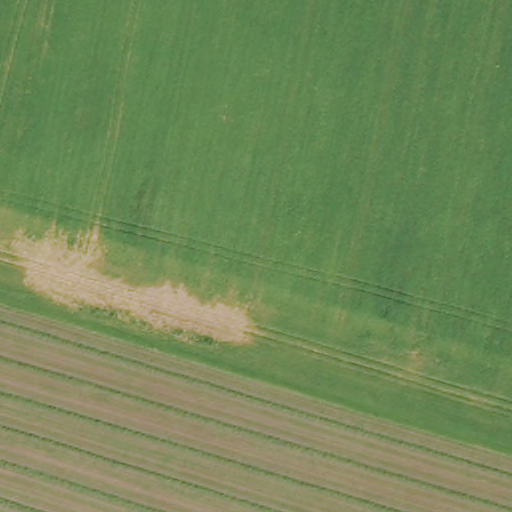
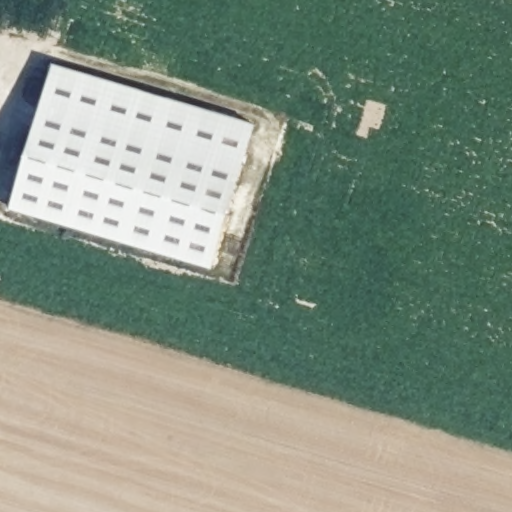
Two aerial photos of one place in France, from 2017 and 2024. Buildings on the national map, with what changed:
new [(54,64),(256,124),(213,270),(10,209),(54,64)]

